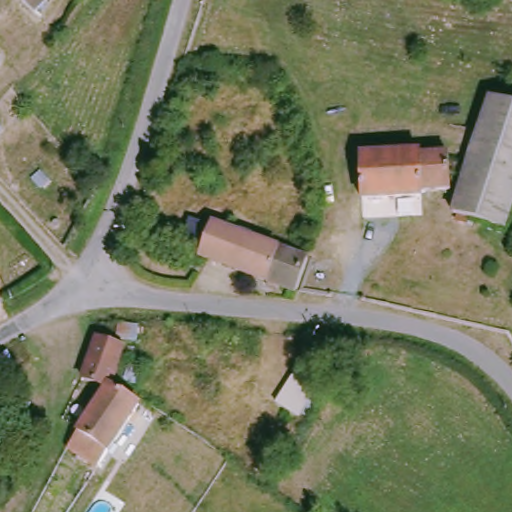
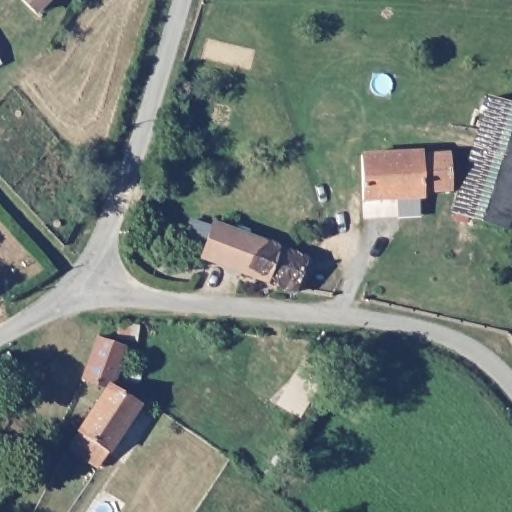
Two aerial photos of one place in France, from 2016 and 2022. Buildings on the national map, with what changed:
unchanged [(44,0),(26,19),(10,3),(11,0),(44,0)]
unchanged [(506,222),(457,202),(477,150),(497,93),(512,99),(512,206),(506,222)]
unchanged [(452,158),(458,158),(465,168),(462,176),(457,177),(457,187),(430,187),(430,202),(368,200),(369,150),(452,150),(452,158)]
unchanged [(207,221),(304,252),(296,285),(295,291),(201,260),(207,221)]
unchanged [(127,341),(113,384),(83,373),(100,332),(127,341)]
unchanged [(102,466),(73,448),(82,432),(113,384),(142,405),(102,466)]

